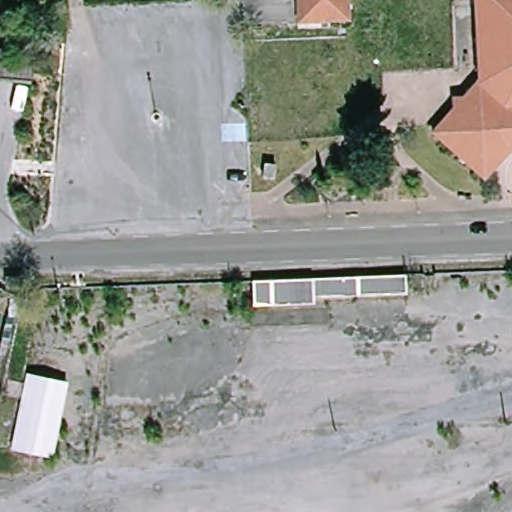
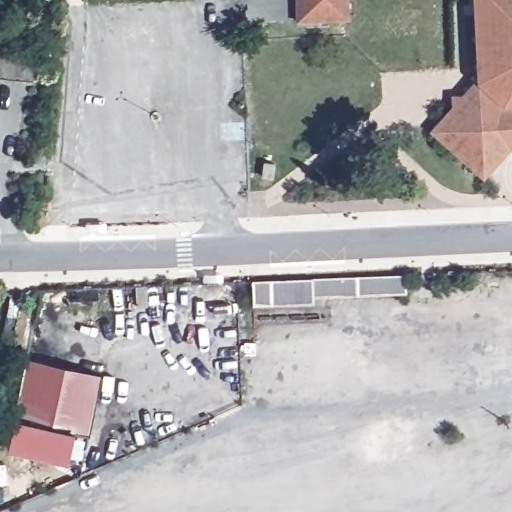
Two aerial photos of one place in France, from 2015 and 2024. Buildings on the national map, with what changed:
unchanged [(349,0),(349,19),(297,20),(297,0),(349,0)]
unchanged [(512,0),(512,153),(510,153),(483,182),(431,135),(453,112),(453,101),(462,100),(477,83),(473,16),(473,6),(473,3),(472,0),(512,0)]
unchanged [(36,54),(32,84),(0,81),(0,51),(36,54)]
unchanged [(333,294),(296,296),(296,303),(256,305),(255,282),(406,276),(407,292),(333,294)]
new [(100,374),(80,467),(7,448),(26,359),(100,374)]
demolished [(26,379),(9,376),(11,364),(28,366),(26,379)]

